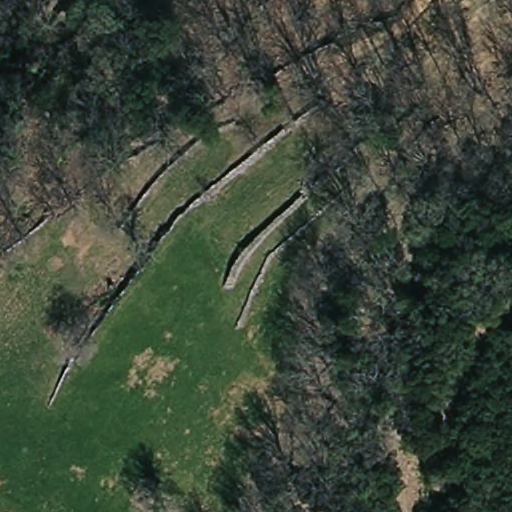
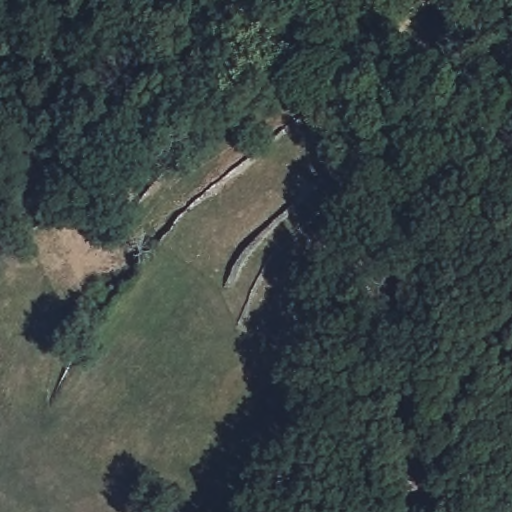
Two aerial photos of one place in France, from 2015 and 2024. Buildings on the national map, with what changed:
[]

